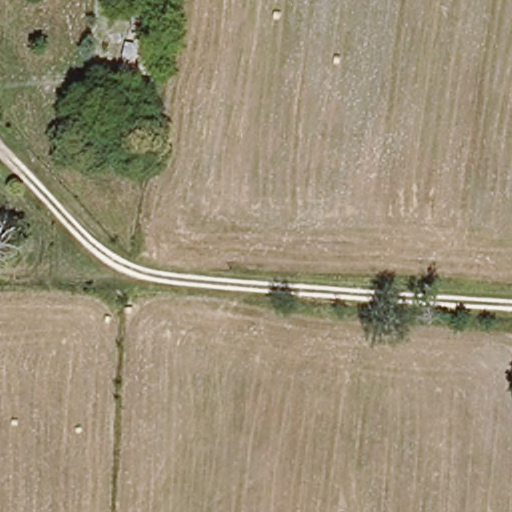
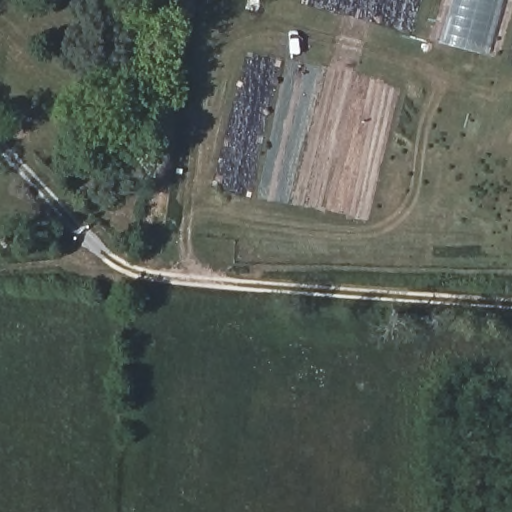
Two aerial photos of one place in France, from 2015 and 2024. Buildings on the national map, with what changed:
new [(441,43),(453,0),(503,0),(488,54),(441,43)]
unchanged [(125,104),(143,106),(141,125),(123,124),(125,104)]

